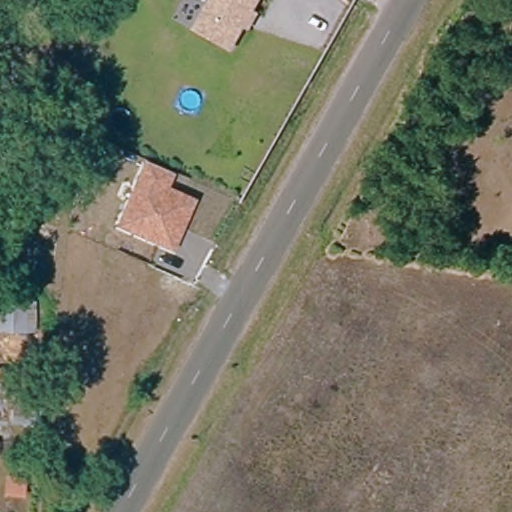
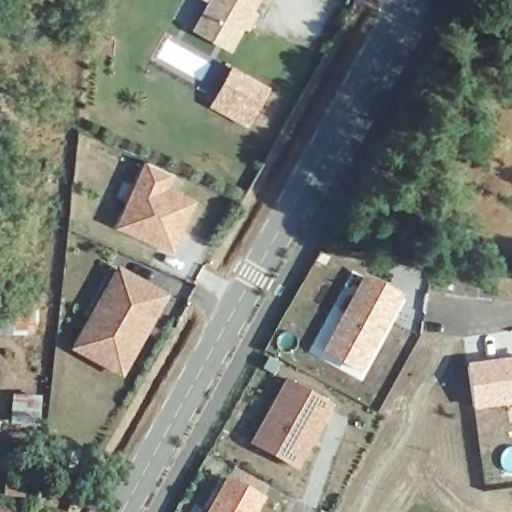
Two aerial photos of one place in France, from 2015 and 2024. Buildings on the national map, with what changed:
unchanged [(217,0),(262,0),(254,12),(259,15),(252,28),(247,26),(242,36),(234,49),(200,30),(208,17),(217,0)]
new [(231,65),(272,87),(247,129),(207,106),(231,65)]
unchanged [(149,157),(174,169),(167,185),(195,197),(174,244),(152,235),(121,221),(125,212),(149,157)]
new [(125,371),(79,345),(94,316),(99,318),(113,293),(126,268),(169,292),(151,325),(142,341),(125,371)]
new [(404,295),(362,375),(320,355),(366,272),(404,295)]
unchanged [(39,336),(0,334),(0,300),(41,302),(39,336)]
new [(512,362),(512,403),(475,408),(469,368),(512,362)]
new [(287,382),(329,406),(295,467),(254,443),(287,382)]
new [(19,392),(43,395),(40,418),(16,416),(19,392)]
new [(267,497),(259,512),(207,512),(228,475),(267,497)]

